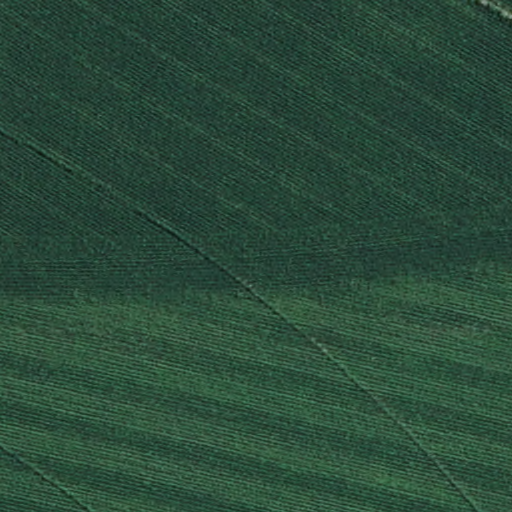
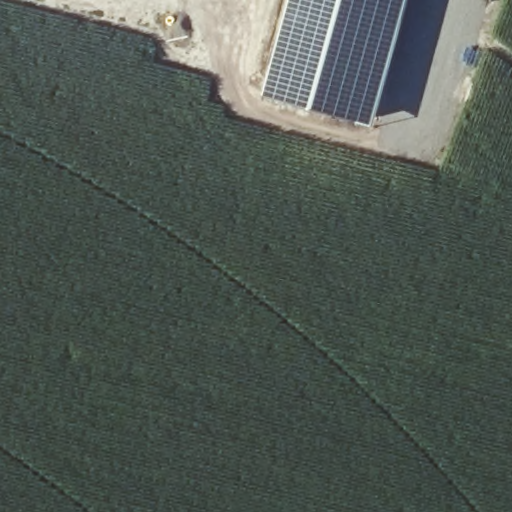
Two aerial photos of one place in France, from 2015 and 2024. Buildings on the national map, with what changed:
new [(409,0),(393,60),(372,127),(261,97),(286,0),(409,0)]

